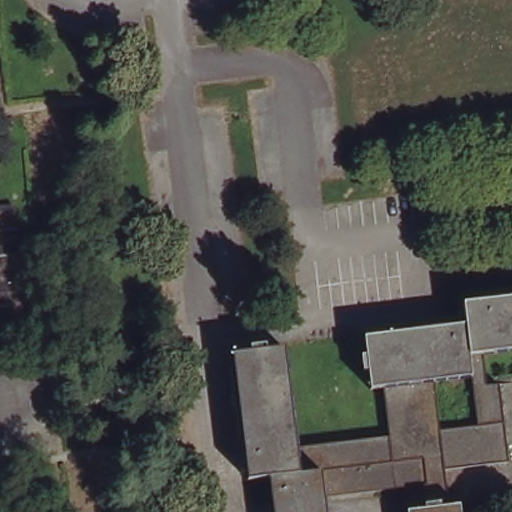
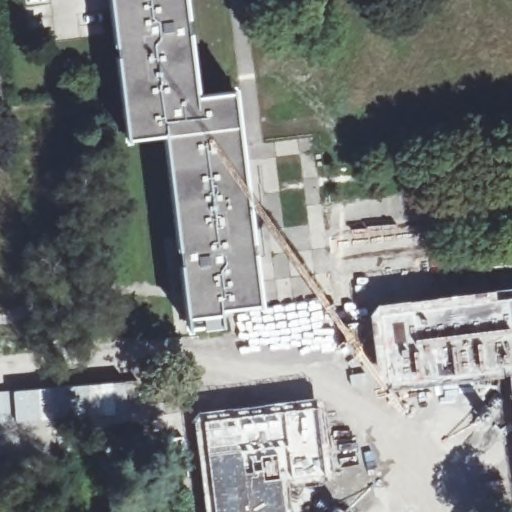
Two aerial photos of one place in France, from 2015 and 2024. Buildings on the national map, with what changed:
new [(235,91),(253,240),(235,243),(237,258),(182,265),(166,133),(129,138),(112,0),(185,0),(197,96),(235,91)]
new [(237,258),(235,243),(253,240),(261,305),(222,310),(223,324),(190,328),(182,265),(237,258)]
demolished [(512,292),(512,345),(482,349),(478,319),(460,322),(458,299),(512,292)]
demolished [(453,356),(465,354),(460,322),(478,319),(482,349),(484,372),(470,375),(442,378),(441,358),(453,356)]
demolished [(465,354),(453,356),(441,358),(442,378),(433,379),(432,370),(410,373),(382,376),(382,385),(367,387),(362,331),(460,322),(465,354)]
demolished [(250,350),(250,344),(264,342),(265,348),(285,347),(298,444),(300,470),(320,468),(323,494),(277,499),(273,475),(247,479),(232,352),(235,352),(250,350)]
demolished [(387,433),(382,385),(382,376),(410,373),(432,370),(433,379),(438,427),(475,422),(470,375),(484,372),(485,383),(498,381),(507,459),(444,468),(449,502),(422,507),(418,482),(323,494),(320,468),(300,470),(298,444),(387,433)]
new [(141,379),(147,419),(13,423),(11,389),(141,379)]
demolished [(323,494),(324,498),(326,512),(278,512),(277,503),(277,499),(323,494)]
demolished [(422,507),(449,502),(453,502),(455,512),(422,512),(422,507)]
demolished [(404,509),(422,507),(422,512),(404,512),(404,509)]

